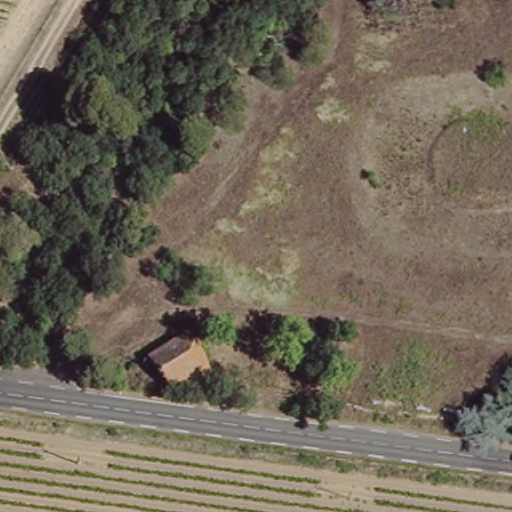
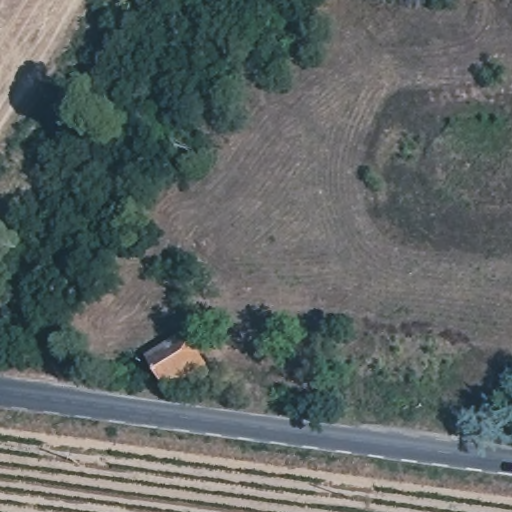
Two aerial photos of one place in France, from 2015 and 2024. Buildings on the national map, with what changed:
unchanged [(173,383),(162,389),(157,381),(144,359),(186,332),(195,348),(205,365),(173,383)]

